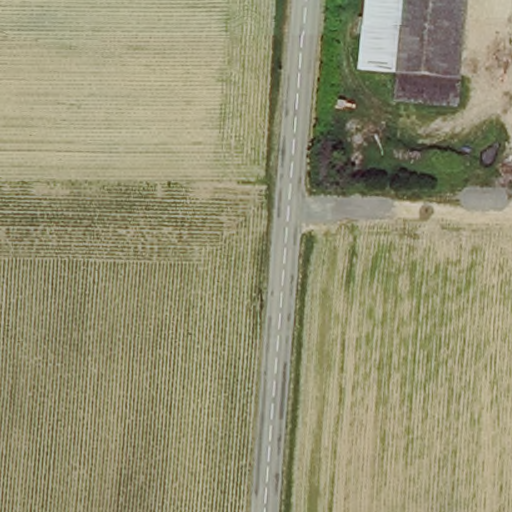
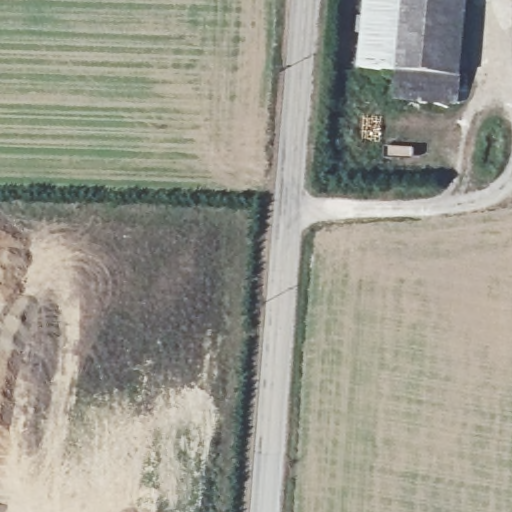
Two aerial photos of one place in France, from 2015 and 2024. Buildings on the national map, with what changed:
unchanged [(363,68),(366,0),(404,0),(400,69),(363,68)]
unchanged [(463,71),(400,69),(404,0),(466,0),(463,71)]

